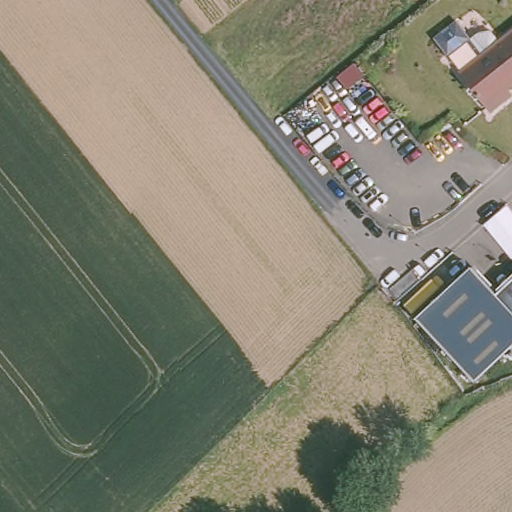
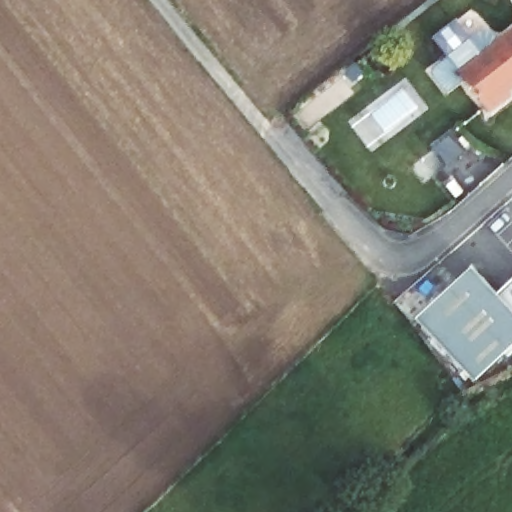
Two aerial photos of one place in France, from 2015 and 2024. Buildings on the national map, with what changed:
unchanged [(458,62),(512,20),(512,57),(475,85),(458,62)]
unchanged [(507,88),(487,102),(475,85),(512,57),(512,74),(502,82),(507,88)]
unchanged [(414,319),(470,267),(495,293),(512,277),(512,347),(473,383),(414,319)]

